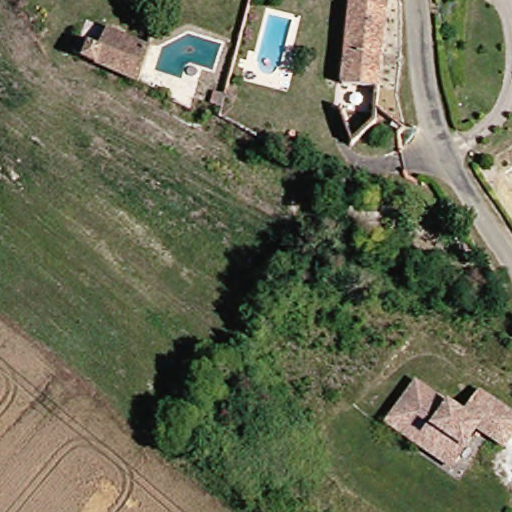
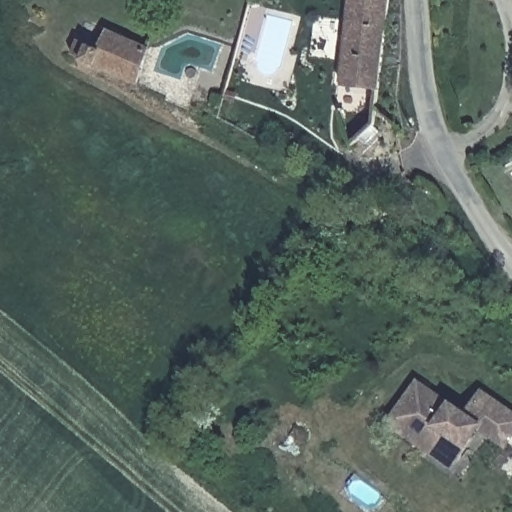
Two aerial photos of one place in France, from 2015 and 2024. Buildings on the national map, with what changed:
unchanged [(387,80),(354,74),(363,0),(396,0),(387,80)]
unchanged [(108,48),(113,35),(153,46),(143,77),(78,59),(84,41),(108,48)]
unchanged [(398,423),(423,384),(472,416),(487,394),(501,403),(512,410),(512,443),(486,426),(462,464),(398,423)]

